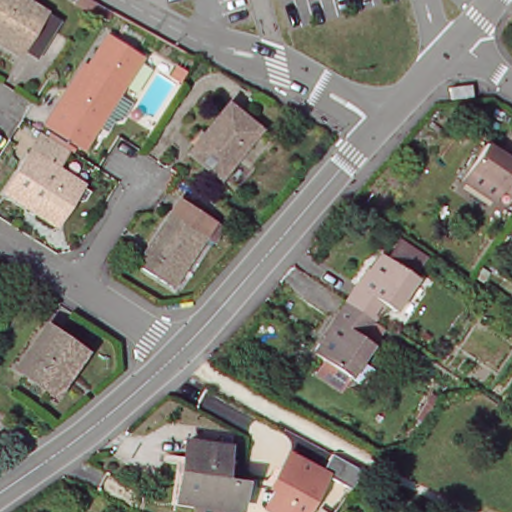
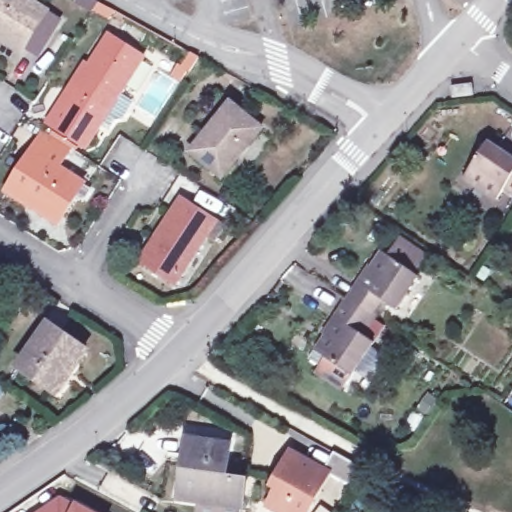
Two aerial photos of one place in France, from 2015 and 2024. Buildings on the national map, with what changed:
unchanged [(4,0),(36,0),(68,18),(48,51),(35,43),(30,49),(11,38),(0,32),(0,6),(4,0)]
unchanged [(119,87),(133,96),(123,114),(115,115),(108,126),(99,120),(86,143),(53,123),(63,105),(65,107),(112,31),(143,49),(119,87)]
unchanged [(481,93),(461,97),(459,86),(479,82),(481,93)]
unchanged [(264,122),(231,173),(196,152),(228,100),(264,122)]
unchanged [(28,205),(7,191),(46,133),(69,148),(56,166),(81,183),(59,218),(55,223),(28,205)]
unchanged [(502,206),(464,180),(488,149),(506,162),(510,156),(512,157),(512,198),(511,197),(502,206)]
unchanged [(218,234),(210,229),(178,279),(143,259),(174,207),(181,210),(192,193),(212,205),(209,208),(227,219),(218,234)]
unchanged [(376,264),(379,267),(389,256),(423,278),(401,309),(392,303),(379,320),(350,300),(376,264)]
unchanged [(366,338),(376,346),(356,376),(319,351),(331,334),(328,331),(350,300),(379,320),(366,338)]
unchanged [(78,371),(71,366),(55,392),(22,371),(50,326),(91,351),(78,371)]
unchanged [(201,497),(183,493),(193,434),(231,441),(225,472),(246,477),(239,506),(238,512),(198,512),(201,497)]
unchanged [(311,512),(272,512),(261,505),(286,450),(331,473),(311,512)]
new [(61,499),(78,505),(91,512),(42,512),(61,499)]

